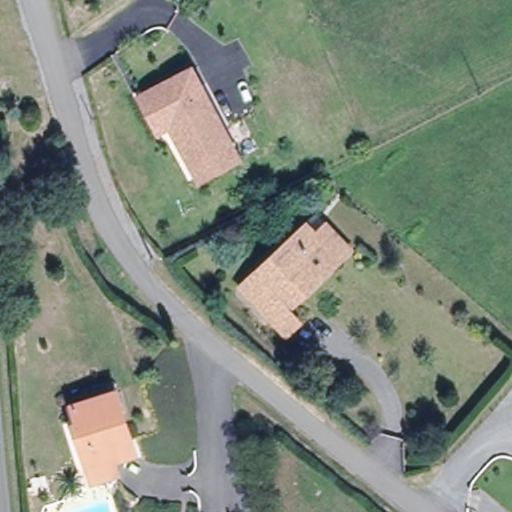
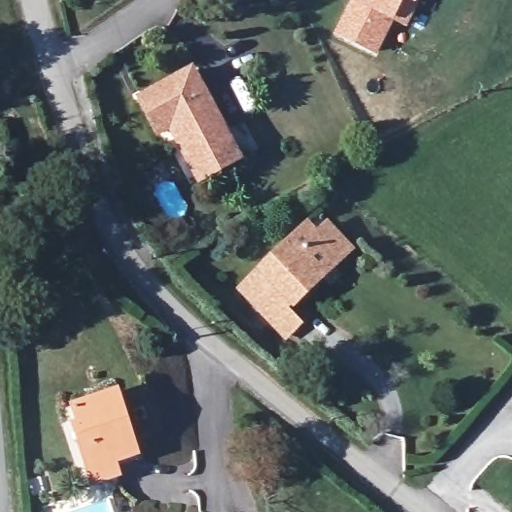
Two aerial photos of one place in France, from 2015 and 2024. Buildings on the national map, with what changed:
new [(392,17),(376,51),(337,33),(354,0),(419,0),(408,24),(392,17)]
unchanged [(203,182),(195,168),(180,142),(182,136),(177,125),(160,134),(142,100),(193,72),(234,148),(241,161),(203,182)]
unchanged [(290,348),(275,333),(245,301),(297,255),(313,240),(324,251),(337,241),(359,265),(347,275),(335,286),(323,298),(318,293),(289,320),(305,335),(290,348)]
unchanged [(81,470),(79,455),(73,417),(81,416),(75,388),(119,381),(123,405),(128,429),(119,430),(120,447),(112,448),(114,466),(81,470)]

